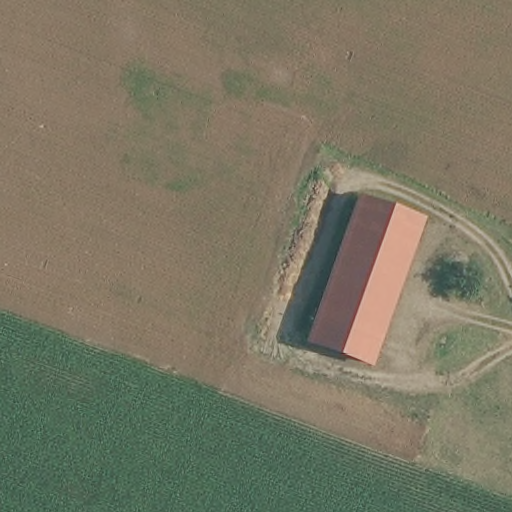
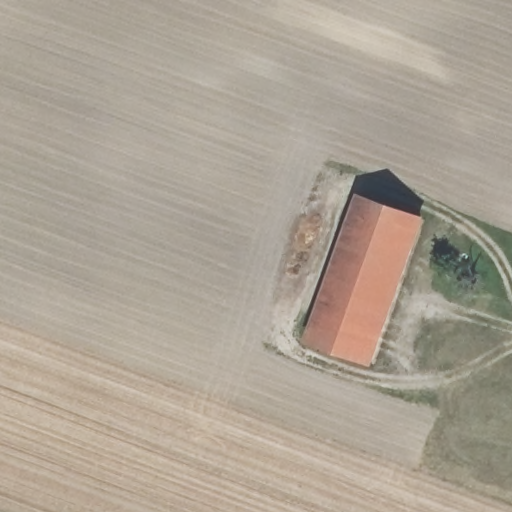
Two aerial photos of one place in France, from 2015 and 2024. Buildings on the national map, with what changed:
unchanged [(424,222),(374,365),(312,343),(363,200),(424,222)]

